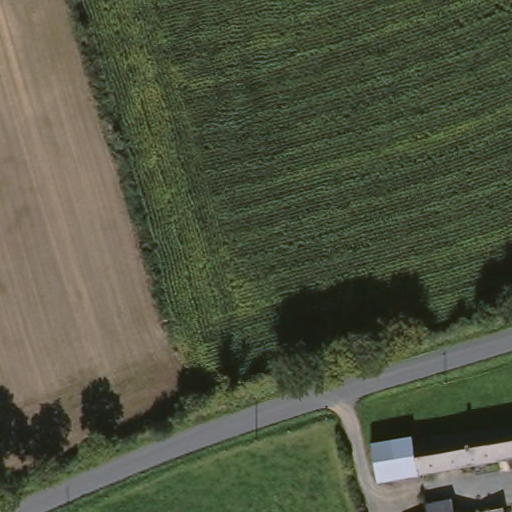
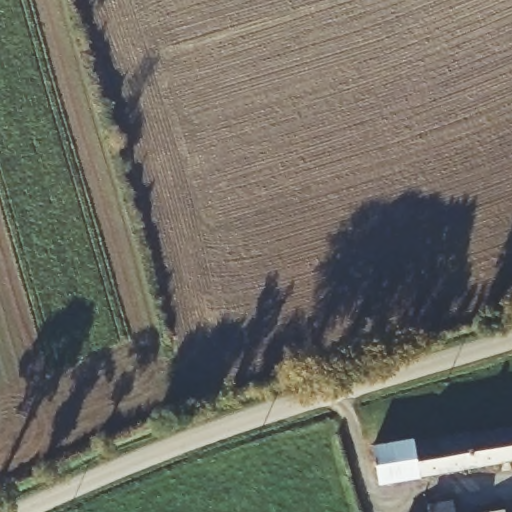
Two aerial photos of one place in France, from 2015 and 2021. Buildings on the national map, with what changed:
unchanged [(416,440),(512,426),(512,457),(378,481),(373,441),(414,435),(416,440)]
unchanged [(453,498),(456,512),(428,512),(427,503),(453,498)]
unchanged [(505,512),(480,512),(504,507),(505,512)]

